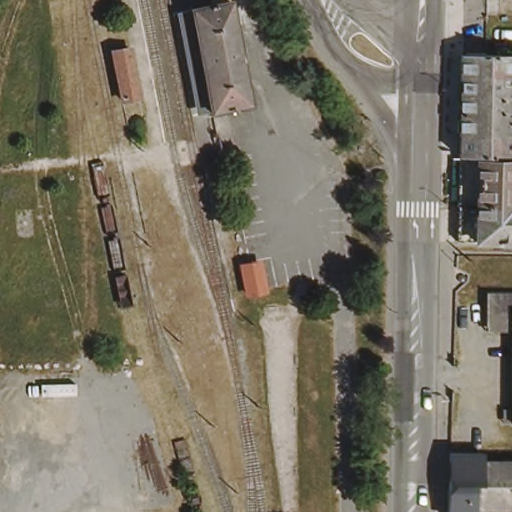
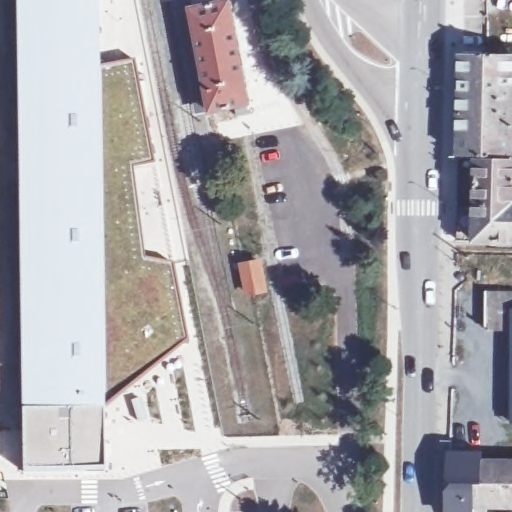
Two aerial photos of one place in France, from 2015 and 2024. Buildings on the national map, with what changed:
new [(131,65),(155,166),(132,167),(140,260),(172,261),(188,340),(103,358),(105,469),(22,470),(16,0),(96,0),(99,65),(131,65)]
unchanged [(200,4),(217,0),(238,0),(259,100),(219,107),(200,4)]
unchanged [(204,111),(185,7),(200,4),(219,107),(204,111)]
demolished [(128,49),(137,97),(120,101),(111,52),(128,49)]
unchanged [(465,152),(467,55),(512,54),(512,153),(467,152),(465,152)]
unchanged [(464,155),(512,156),(512,200),(463,200),(464,155)]
unchanged [(512,240),(462,240),(463,200),(512,200),(512,240)]
unchanged [(258,262),(264,290),(247,293),(242,264),(258,262)]
unchanged [(485,310),(512,309),(512,346),(485,346),(485,310)]
unchanged [(501,424),(512,423),(512,438),(500,437),(501,424)]
unchanged [(457,451),(488,451),(489,460),(512,460),(512,506),(455,506),(457,451)]

